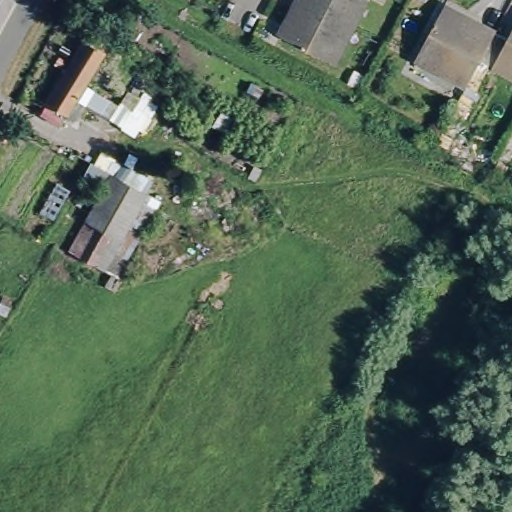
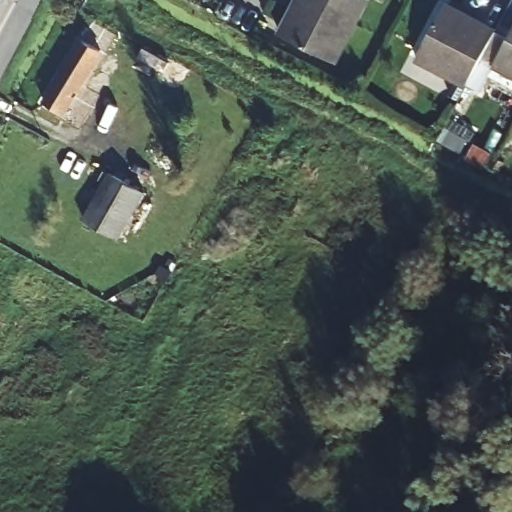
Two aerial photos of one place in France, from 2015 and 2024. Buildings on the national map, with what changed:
unchanged [(355,28),(335,65),(282,37),(302,0),(305,0),(355,28)]
unchanged [(305,0),(372,0),(355,28),(305,0)]
unchanged [(473,64),(462,84),(425,64),(455,10),(492,31),(473,64)]
unchanged [(90,26),(115,41),(112,46),(107,43),(52,133),(32,120),(90,26)]
unchanged [(507,31),(512,34),(512,77),(488,64),(507,31)]
unchanged [(147,191),(145,200),(157,205),(125,258),(133,263),(120,292),(107,286),(113,274),(80,260),(98,223),(85,217),(103,172),(147,191)]

